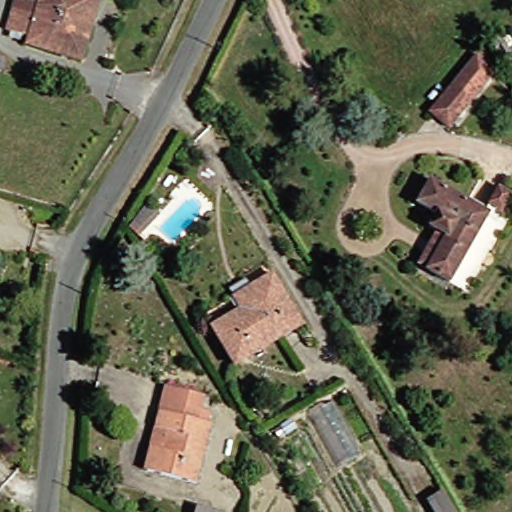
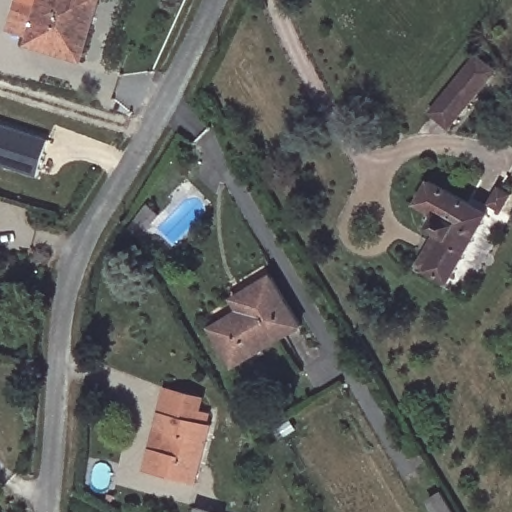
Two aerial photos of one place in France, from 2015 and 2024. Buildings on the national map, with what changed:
unchanged [(13,28),(19,6),(21,0),(41,0),(46,2),(46,0),(102,0),(99,11),(88,51),(79,48),(13,28)]
unchanged [(0,78),(0,61),(15,66),(10,82),(0,78)]
unchanged [(468,76),(485,90),(453,130),(437,116),(468,76)]
new [(0,125),(49,140),(37,177),(0,165),(0,125)]
unchanged [(442,227),(437,224),(443,211),(423,200),(434,180),(494,212),(456,286),(428,271),(421,267),(442,227)]
unchanged [(507,186),(512,189),(512,202),(507,209),(496,201),(507,186)]
unchanged [(309,326),(240,365),(218,326),(248,310),(241,296),(254,288),(279,274),(309,326)]
unchanged [(213,412),(199,473),(152,462),(157,437),(154,436),(158,417),(162,400),(213,412)]
unchanged [(435,502),(448,490),(462,512),(442,512),(435,502)]

